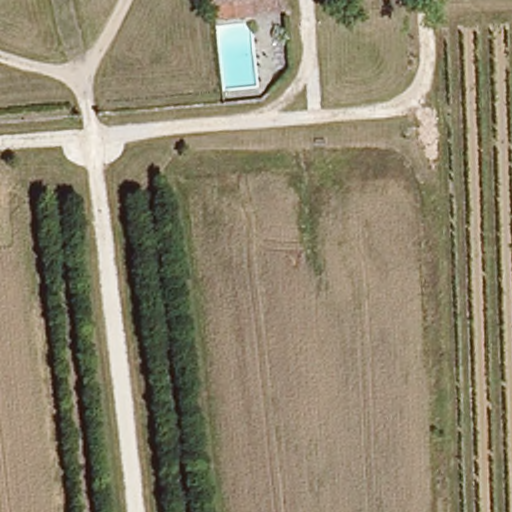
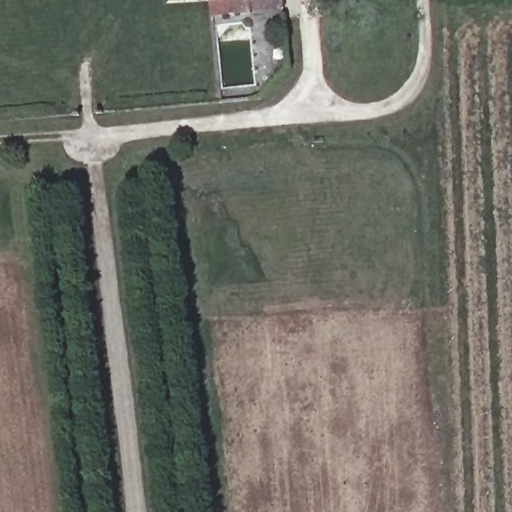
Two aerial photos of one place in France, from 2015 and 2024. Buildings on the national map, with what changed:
unchanged [(270,7),(197,13),(195,0),(283,0),(283,6),(270,7)]
unchanged [(272,65),(271,46),(291,44),(292,63),(272,65)]

